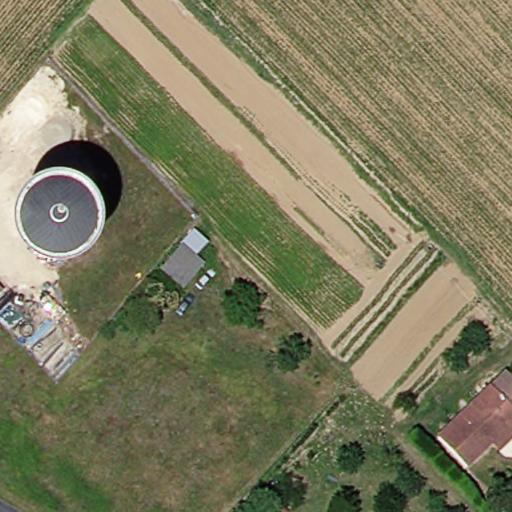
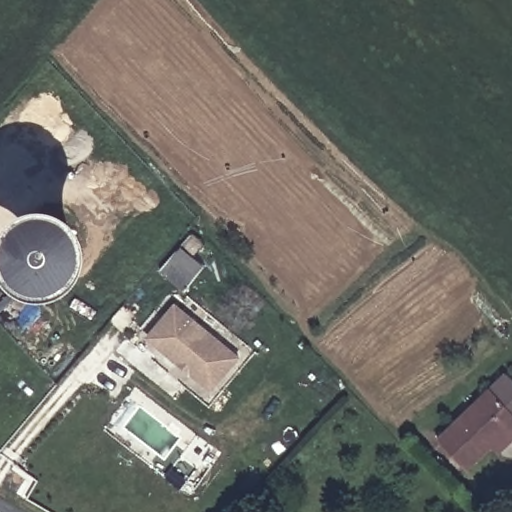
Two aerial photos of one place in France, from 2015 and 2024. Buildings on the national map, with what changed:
unchanged [(168,272),(201,231),(218,244),(206,260),(213,265),(191,292),(168,272)]
new [(176,303),(239,356),(211,392),(146,337),(176,303)]
unchanged [(498,444),(472,470),(443,441),(512,375),(512,445),(505,452),(498,444)]

